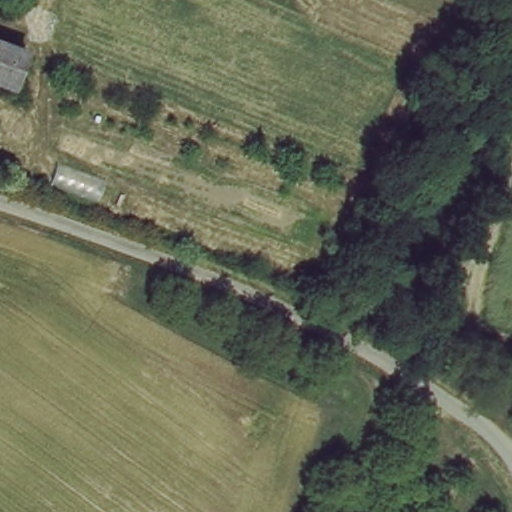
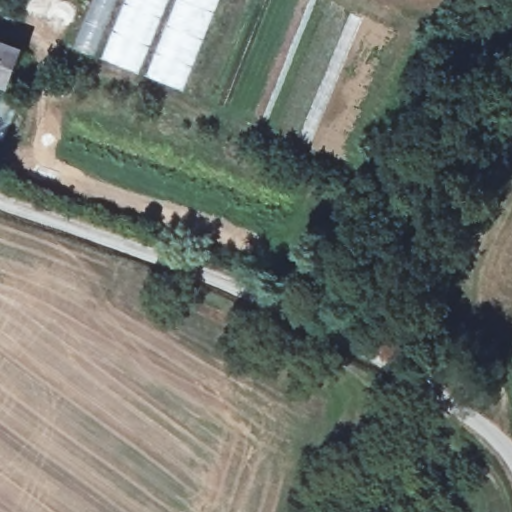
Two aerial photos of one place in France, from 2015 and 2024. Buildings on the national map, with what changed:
new [(173,0),(143,75),(119,66),(121,60),(123,61),(125,53),(113,49),(110,58),(102,55),(124,0),(173,0)]
new [(221,0),(217,9),(183,91),(143,75),(173,0),(221,0)]
unchanged [(12,81),(0,78),(0,38),(25,46),(12,81)]
unchanged [(177,204),(169,229),(43,183),(49,158),(177,204)]

